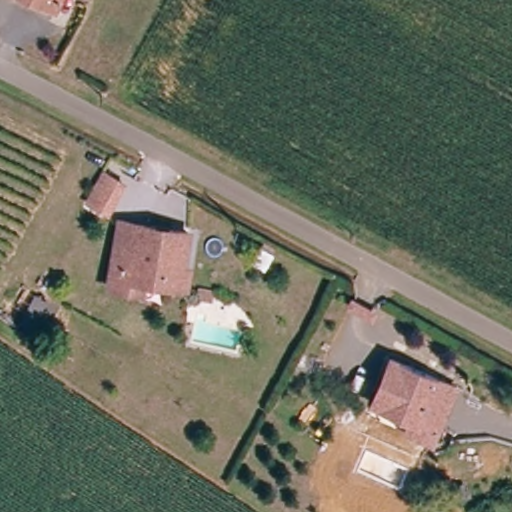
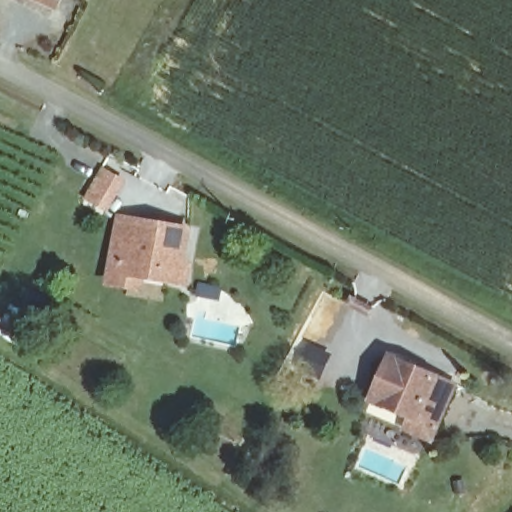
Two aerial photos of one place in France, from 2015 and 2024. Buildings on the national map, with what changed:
unchanged [(39,0),(59,0),(55,7),(39,0)]
unchanged [(99,172),(121,182),(107,212),(86,202),(99,172)]
unchanged [(185,260),(194,261),(191,281),(153,277),(151,292),(114,287),(119,252),(123,219),(139,220),(190,226),(185,260)]
unchanged [(399,425),(406,413),(394,406),(376,395),(380,387),(400,356),(455,388),(431,428),(424,440),(399,425)]

